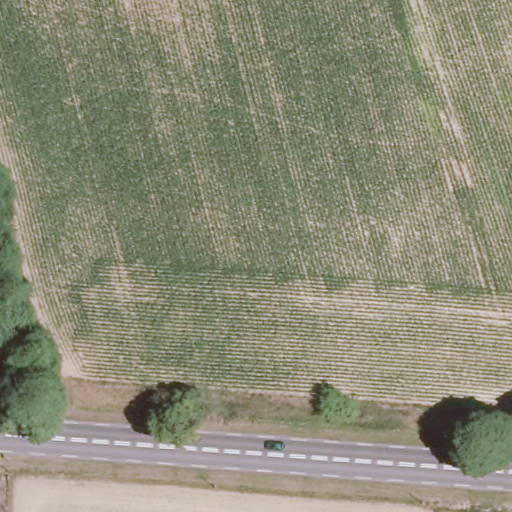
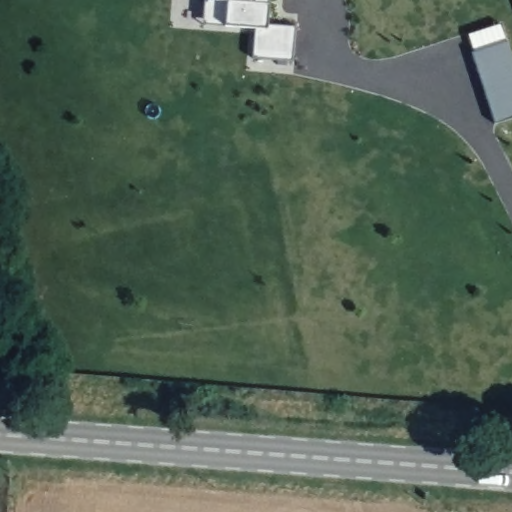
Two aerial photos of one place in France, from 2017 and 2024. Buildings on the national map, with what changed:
new [(213,0),(269,0),(267,27),(295,29),(292,64),(252,61),(254,31),(224,29),(202,27),(204,0),(213,0),(212,3),(213,0)]
new [(503,44),(512,72),(512,120),(490,127),(467,55),(503,44)]

